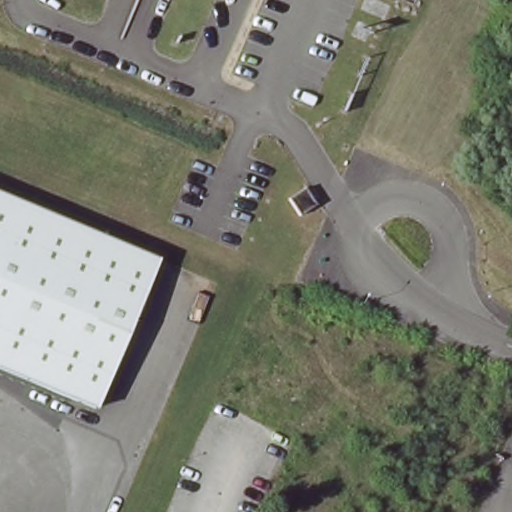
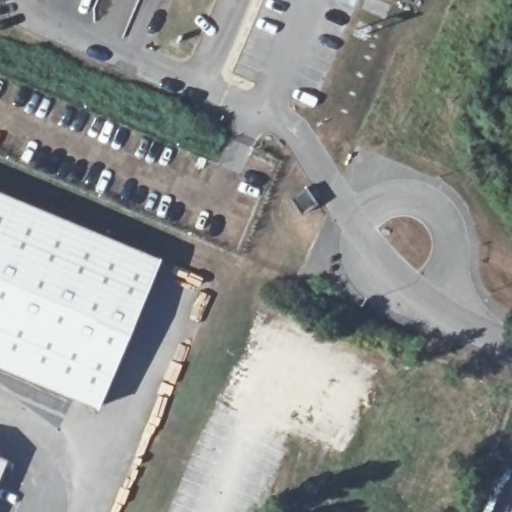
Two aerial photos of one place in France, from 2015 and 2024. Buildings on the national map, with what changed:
unchanged [(278,194),(294,183),(306,200),(289,211),(278,194)]
unchanged [(0,364),(0,191),(154,253),(98,391),(94,402),(0,364)]
new [(7,459),(0,476),(0,456),(7,459)]

